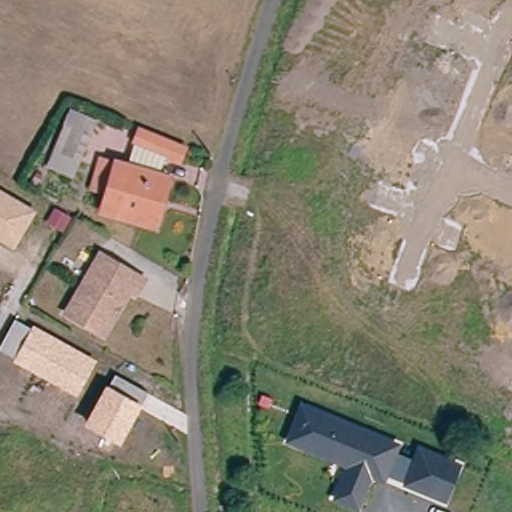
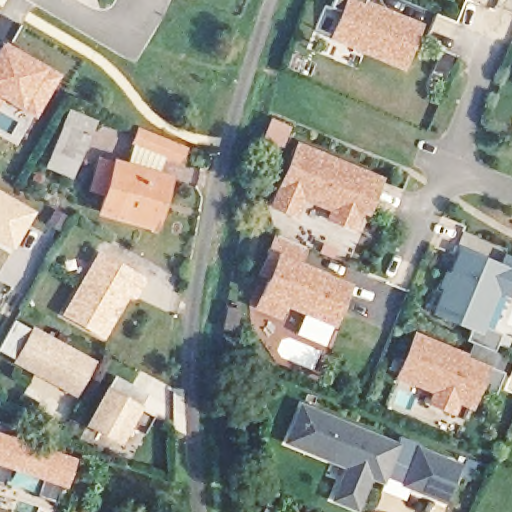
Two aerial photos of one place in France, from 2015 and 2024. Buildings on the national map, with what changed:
new [(333,0),(367,0),(364,6),(418,29),(402,67),(333,39),(343,15),(330,9),(333,0)]
new [(0,98),(0,45),(1,43),(6,41),(62,74),(37,119),(22,110),(0,98)]
new [(73,180),(45,168),(71,109),(99,121),(73,180)]
demolished [(87,123),(81,138),(90,142),(81,167),(55,157),(71,117),(87,123)]
unchanged [(145,131),(189,150),(182,164),(139,145),(145,131)]
new [(356,171),(380,181),(374,195),(367,213),(361,211),(353,230),(330,220),(333,213),(332,209),(302,197),(295,215),(274,207),(298,148),(356,171)]
unchanged [(174,180),(160,227),(107,212),(113,193),(97,189),(107,160),(174,180)]
unchanged [(10,247),(0,242),(0,198),(29,214),(10,247)]
unchanged [(42,222),(52,212),(66,219),(58,232),(42,222)]
new [(341,284),(326,321),(276,300),(271,312),(250,303),(262,273),(254,270),(261,252),(269,233),(305,248),(297,267),(322,277),(329,280),(341,284)]
new [(502,333),(494,353),(472,344),(467,340),(472,328),(434,312),(461,245),(512,266),(512,289),(508,296),(499,292),(486,326),(502,333)]
unchanged [(136,285),(127,299),(122,296),(96,341),(58,319),(93,260),(136,285)]
unchanged [(76,398),(12,364),(15,359),(0,351),(0,349),(15,321),(31,329),(34,323),(97,360),(76,398)]
new [(401,373),(389,369),(392,360),(404,365),(416,337),(467,358),(472,344),(500,355),(494,370),(504,374),(495,397),(480,391),(473,407),(460,402),(455,413),(435,405),(439,393),(400,377),(401,373)]
unchanged [(110,388),(117,376),(146,392),(139,404),(142,406),(120,446),(82,426),(105,386),(110,388)]
unchanged [(397,453),(413,459),(418,445),(463,463),(447,506),(401,486),(402,482),(388,476),(383,488),(372,484),(361,512),(354,512),(330,502),(344,468),(285,443),(301,401),(401,442),(397,453)]
new [(36,491),(10,483),(14,470),(8,468),(3,484),(0,483),(0,423),(15,428),(12,436),(75,457),(65,487),(40,479),(36,491)]

